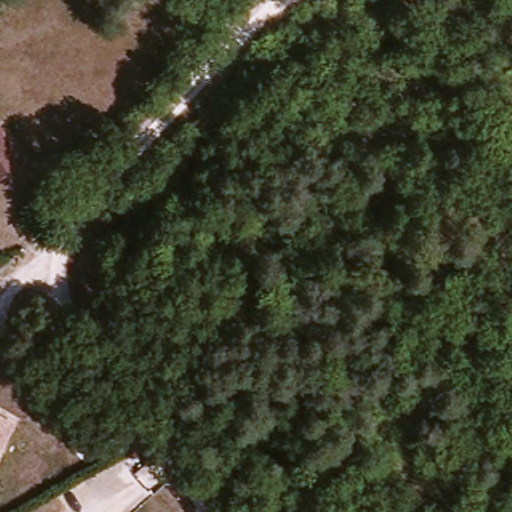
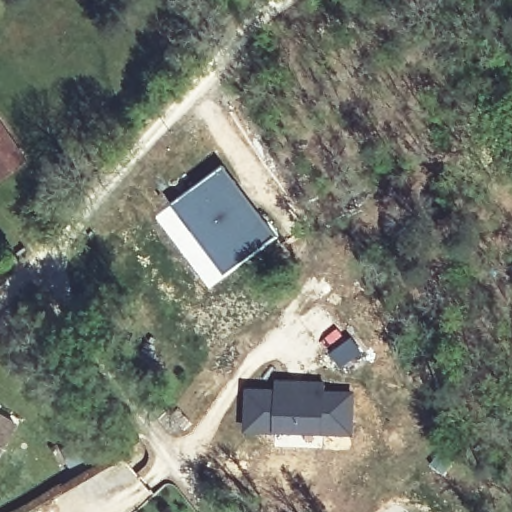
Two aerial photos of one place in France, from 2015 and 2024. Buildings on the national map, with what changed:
unchanged [(0,180),(0,132),(23,164),(0,180)]
new [(222,170),(233,185),(208,204),(230,233),(255,214),(275,240),(222,278),(171,209),(222,170)]
new [(233,185),(255,214),(230,233),(208,204),(233,185)]
new [(250,394),(275,394),(276,385),(324,387),(323,396),(350,397),(350,436),(321,434),(322,428),(276,428),(276,433),(247,432),(250,394)]
unchanged [(3,451),(0,457),(0,405),(22,417),(3,451)]

